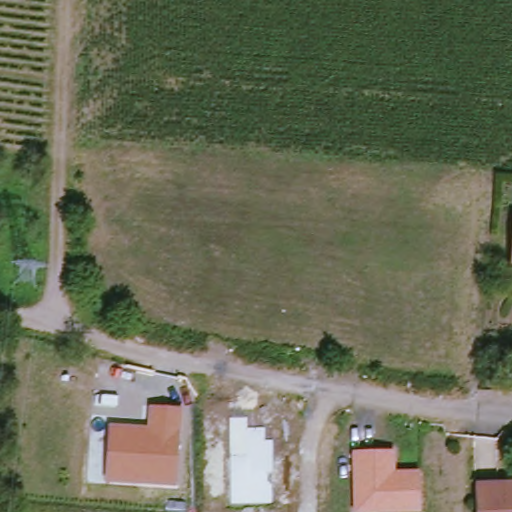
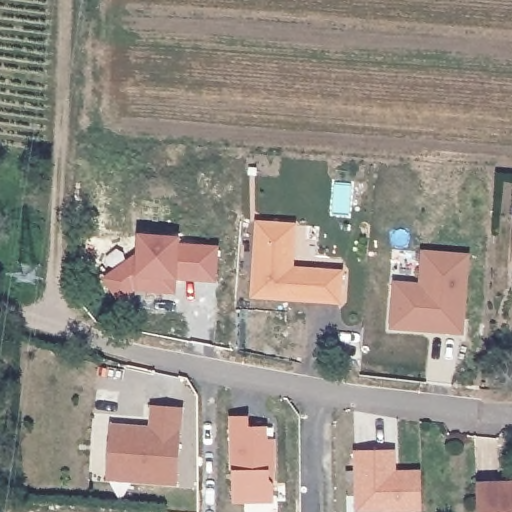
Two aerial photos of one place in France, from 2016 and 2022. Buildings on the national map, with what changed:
new [(255,220),(296,223),(294,266),(344,270),(342,304),(251,297),(255,220)]
new [(216,283),(176,278),(175,293),(134,290),(120,302),(103,278),(136,254),(138,233),(179,237),(179,242),(218,246),(216,283)]
new [(419,283),(421,250),(470,253),(464,335),(391,329),(394,280),(419,283)]
unchanged [(181,407),(178,486),(107,481),(110,424),(149,426),(151,406),(181,407)]
unchanged [(248,417),(248,427),(266,427),(266,439),(272,439),(272,504),(231,504),(232,418),(248,417)]
unchanged [(395,451),(396,470),(419,470),(419,510),(355,511),(354,451),(395,451)]
unchanged [(512,483),(512,512),(477,512),(476,484),(512,483)]

